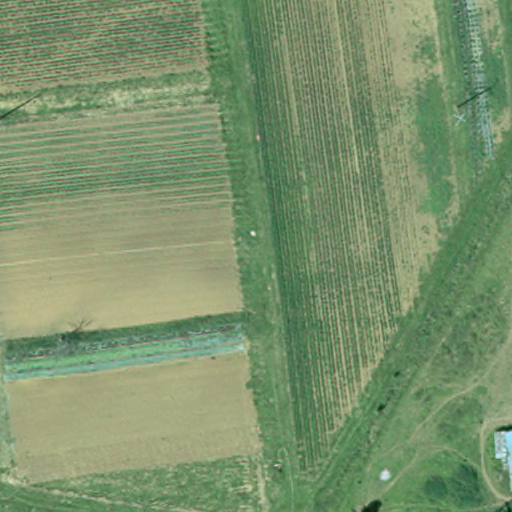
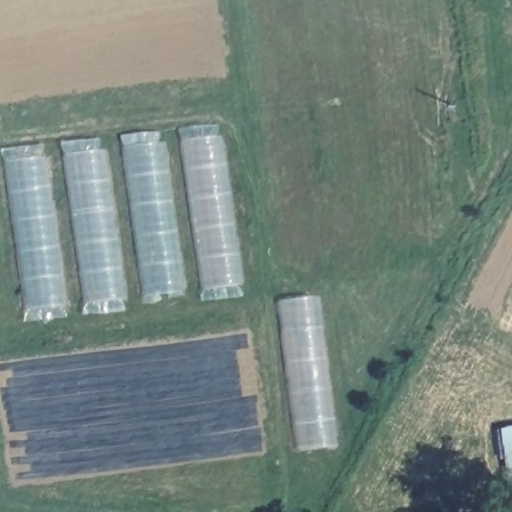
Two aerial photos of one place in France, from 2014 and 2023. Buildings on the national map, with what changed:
new [(5,160),(222,133),(242,282),(24,310),(5,160)]
unchanged [(509,423),(512,423),(512,456),(509,423)]

